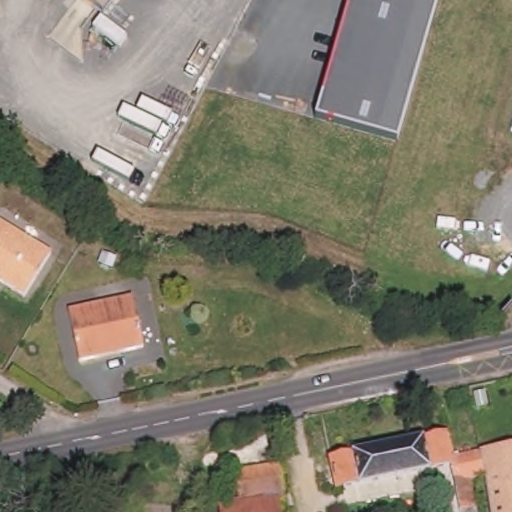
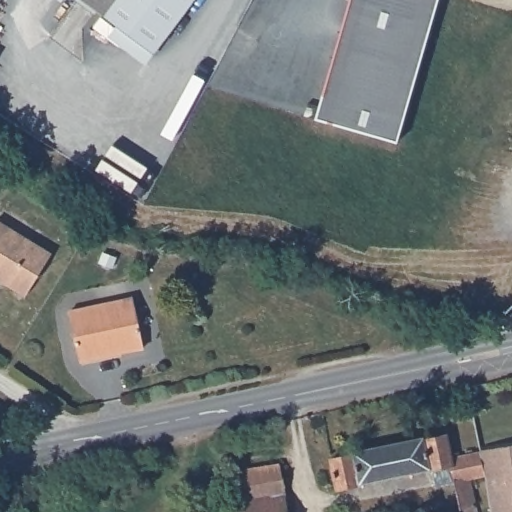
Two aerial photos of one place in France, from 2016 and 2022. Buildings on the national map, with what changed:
unchanged [(100,12),(84,0),(109,0),(100,12)]
new [(154,53),(145,65),(107,37),(93,27),(102,15),(114,0),(193,0),(154,53)]
unchanged [(397,140),(316,118),(350,0),(438,0),(397,140)]
unchanged [(55,255),(25,302),(0,285),(0,224),(55,255)]
unchanged [(83,361),(73,311),(137,298),(147,347),(83,361)]
unchanged [(453,469),(339,494),(333,464),(355,459),(354,457),(426,441),(427,444),(448,439),(452,462),(454,469),(453,469)]
unchanged [(470,478),(476,510),(461,512),(458,512),(449,470),(453,469),(454,469),(452,462),(451,456),(512,444),(512,512),(489,512),(484,477),(470,478)]
unchanged [(238,472),(280,464),(289,512),(223,512),(221,504),(243,500),(238,472)]

